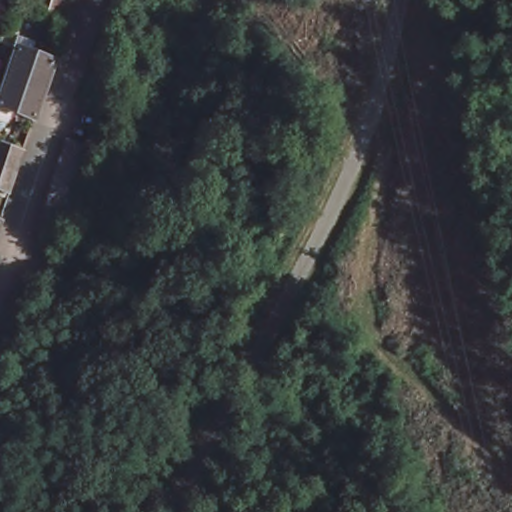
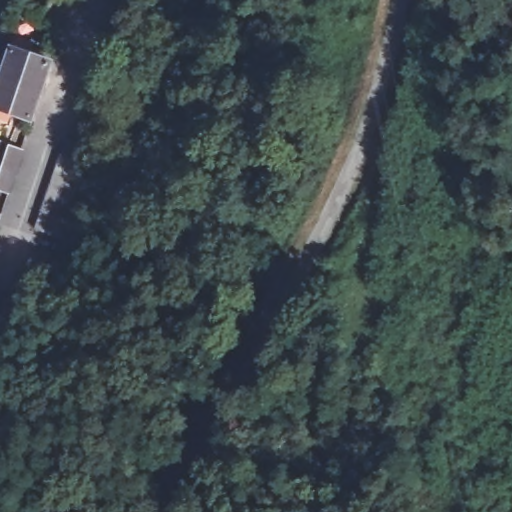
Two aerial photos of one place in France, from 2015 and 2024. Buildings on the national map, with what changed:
unchanged [(58,10),(51,31),(38,26),(46,6),(58,10)]
unchanged [(14,51),(53,65),(42,97),(3,82),(14,51)]
unchanged [(32,124),(0,112),(0,91),(3,82),(42,97),(32,124)]
unchanged [(46,211),(50,198),(55,182),(61,167),(66,152),(70,137),(91,145),(87,159),(82,174),(76,189),(71,205),(67,218),(61,234),(40,227),(46,211)]
unchanged [(32,155),(18,199),(1,191),(15,147),(32,155)]

